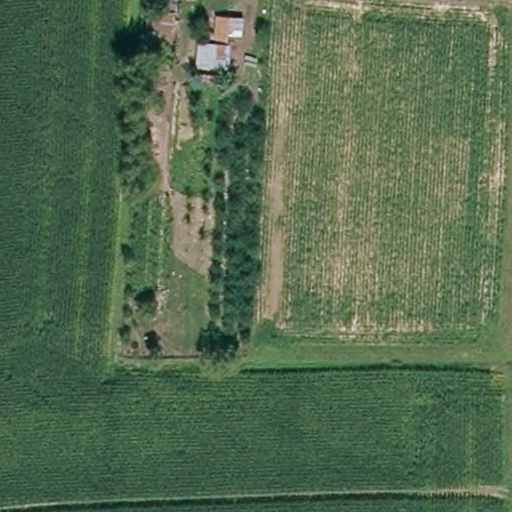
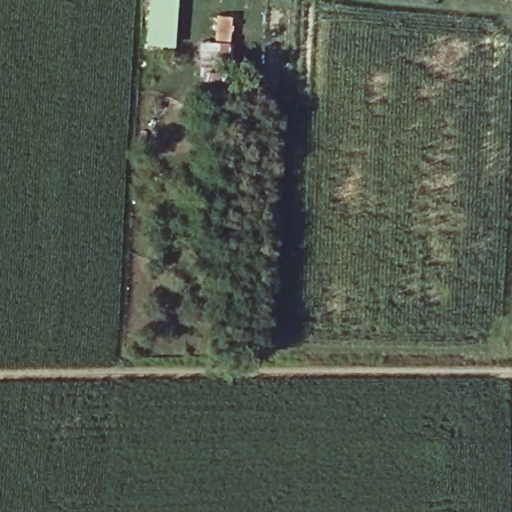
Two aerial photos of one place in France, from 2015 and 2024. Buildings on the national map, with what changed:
new [(146,44),(149,0),(175,0),(172,46),(146,44)]
unchanged [(202,67),(197,66),(201,40),(205,14),(230,17),(231,15),(245,14),(244,33),(232,32),(231,43),(228,70),(222,70),(222,80),(200,78),(202,67)]

